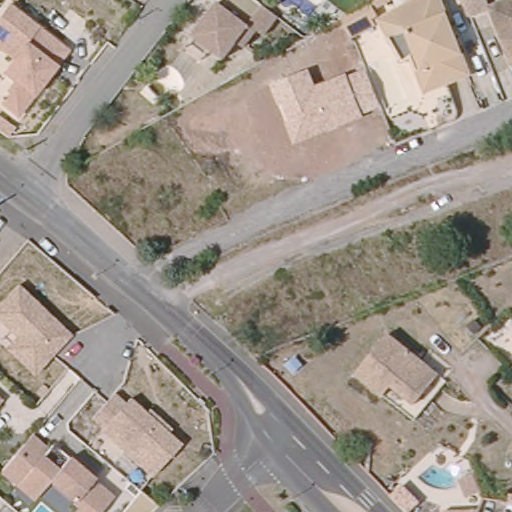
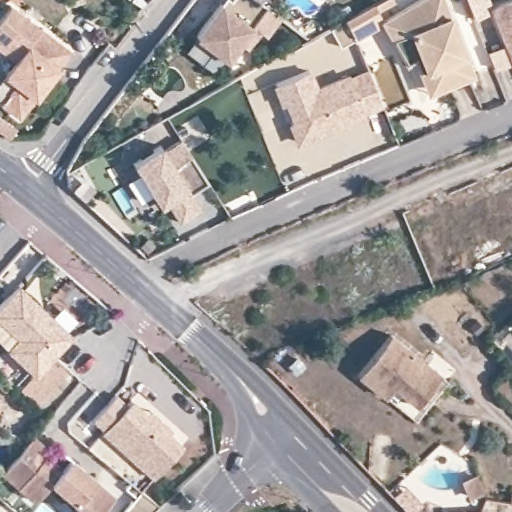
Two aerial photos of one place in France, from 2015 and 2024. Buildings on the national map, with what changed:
new [(130,0),(142,0),(138,5),(130,0)]
unchanged [(262,38),(254,32),(226,62),(191,42),(215,5),(218,0),(226,0),(229,2),(230,0),(253,0),(278,19),(262,38)]
unchanged [(407,62),(380,20),(416,0),(441,0),(472,75),(443,86),(432,91),(418,55),(407,62)]
new [(473,19),(465,0),(487,0),(491,12),(473,19)]
unchanged [(512,0),(512,63),(490,7),(507,0),(512,0)]
unchanged [(34,100),(16,122),(0,108),(0,74),(9,61),(0,54),(0,22),(12,7),(70,46),(34,100)]
unchanged [(270,85),(309,69),(316,84),(348,72),(349,77),(367,70),(381,107),(363,114),(365,120),(295,144),(270,85)]
new [(158,149),(161,155),(183,144),(203,172),(210,187),(183,200),(192,216),(167,229),(156,206),(149,210),(127,165),(158,149)]
unchanged [(0,297),(14,282),(70,336),(48,361),(63,373),(37,403),(22,391),(33,376),(0,346),(0,297)]
unchanged [(445,375),(419,406),(396,387),(388,397),(361,376),(394,335),(445,375)]
unchanged [(510,355),(512,353),(512,357),(510,355)]
unchanged [(90,423),(112,392),(125,400),(129,396),(180,445),(155,480),(90,423)]
unchanged [(73,510),(49,492),(38,503),(0,476),(31,436),(47,451),(54,446),(115,501),(105,512),(71,512),(73,510)]
unchanged [(406,478),(425,497),(412,510),(394,491),(406,478)]
unchanged [(444,503),(482,504),(485,493),(496,494),(482,512),(444,512),(444,503)]

